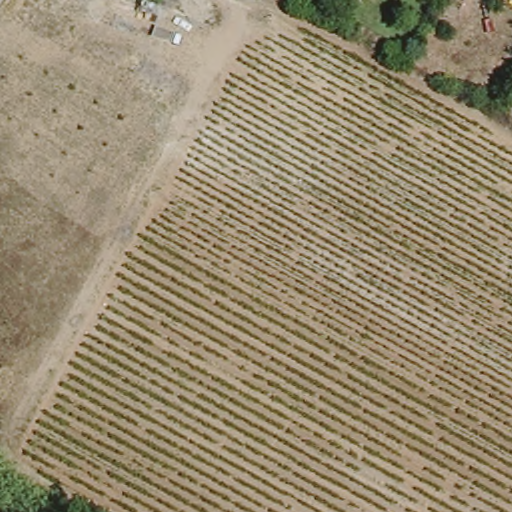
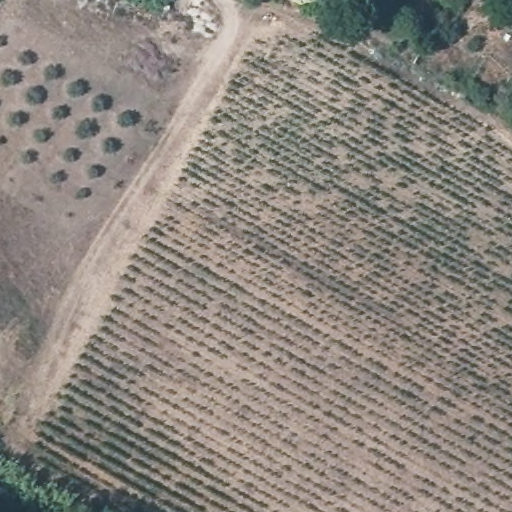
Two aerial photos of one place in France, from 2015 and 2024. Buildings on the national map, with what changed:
[]

